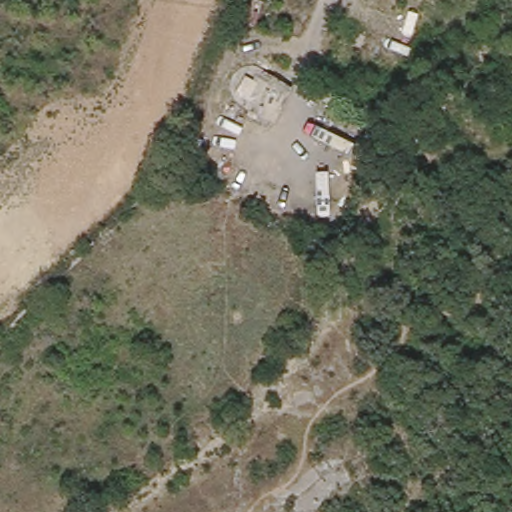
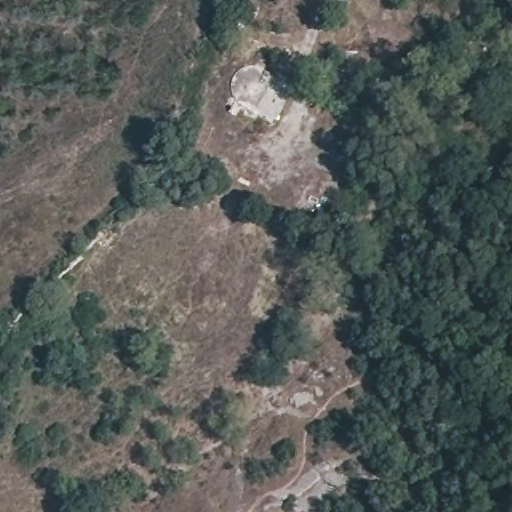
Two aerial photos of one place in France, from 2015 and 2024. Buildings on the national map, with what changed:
unchanged [(275,121),(237,101),(232,91),(232,82),(235,74),(242,68),(252,64),(258,65),(293,86),(275,121)]

